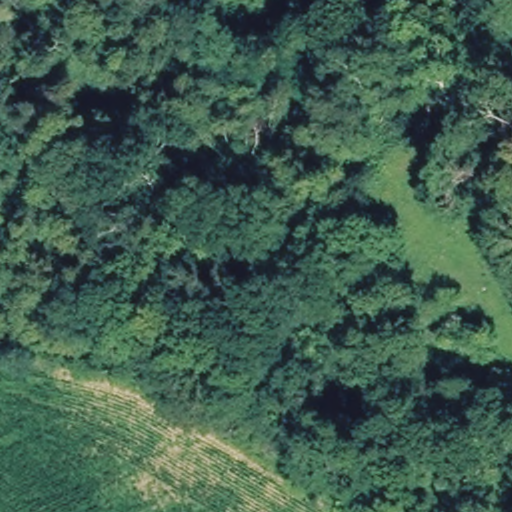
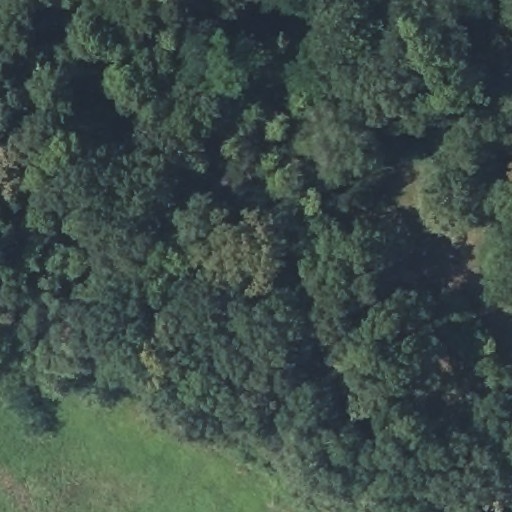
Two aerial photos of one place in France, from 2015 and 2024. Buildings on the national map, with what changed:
unchanged [(37,0),(128,0),(307,142),(261,199),(26,13),(37,0)]

